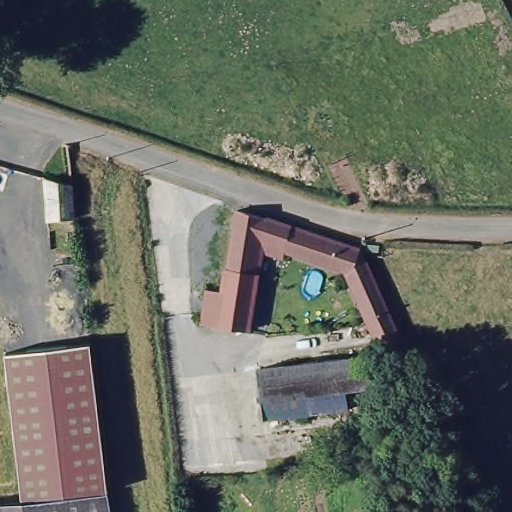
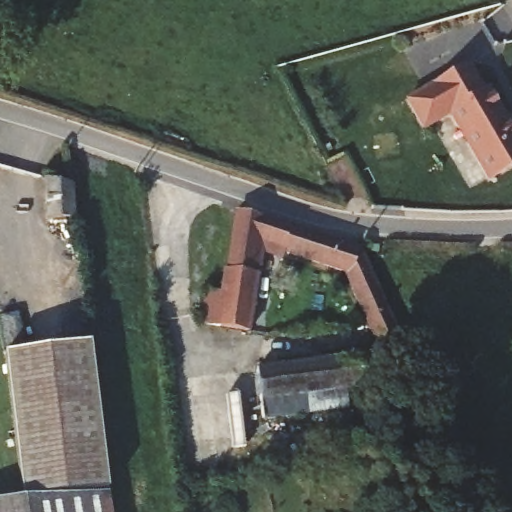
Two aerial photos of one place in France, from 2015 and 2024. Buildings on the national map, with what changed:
new [(422,130),(407,101),(470,66),(483,93),(488,90),(505,120),(510,116),(512,120),(512,166),(470,190),(433,125),(422,130)]
unchanged [(73,185),(75,221),(47,222),(46,183),(73,185)]
unchanged [(380,356),(367,330),(341,275),(252,244),(250,307),(262,310),(262,336),(261,342),(229,340),(228,328),(218,328),(221,264),(215,263),(217,204),(362,254),(391,319),(405,351),(380,356)]
unchanged [(89,344),(107,497),(23,506),(5,355),(89,344)]
unchanged [(375,357),(377,392),(311,398),(312,417),(265,421),(260,365),(375,357)]
unchanged [(115,512),(0,512),(0,509),(113,497),(115,512)]

